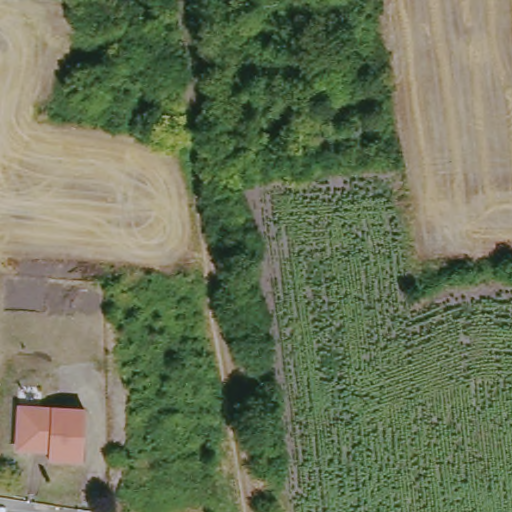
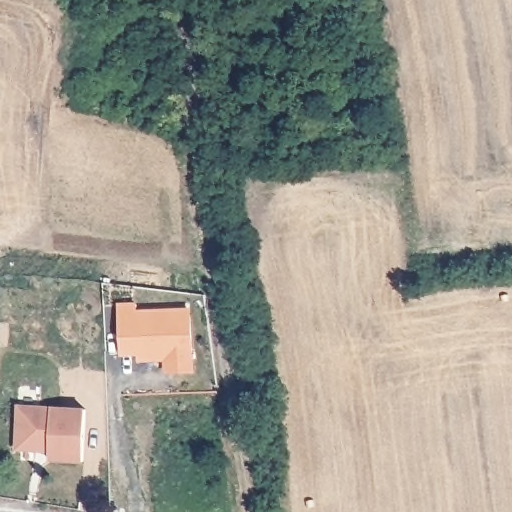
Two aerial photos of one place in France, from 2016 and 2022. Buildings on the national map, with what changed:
new [(138,303),(138,310),(192,308),(197,373),(165,376),(164,362),(137,363),(137,356),(120,357),(119,304),(138,303)]
unchanged [(87,415),(82,468),(49,466),(50,455),(39,453),(36,456),(22,455),(17,449),(18,411),(87,415)]

